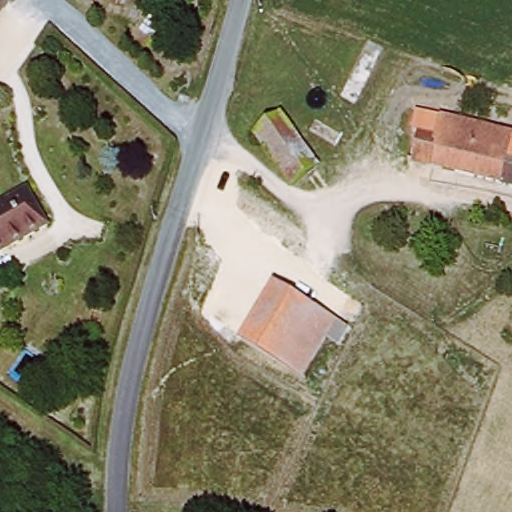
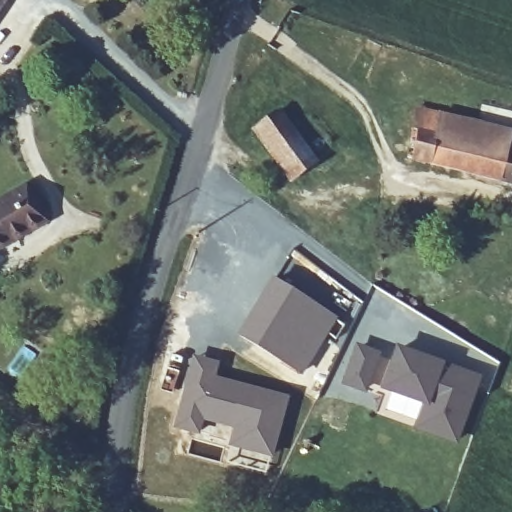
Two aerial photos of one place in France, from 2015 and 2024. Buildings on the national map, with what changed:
unchanged [(0,12),(0,0),(8,0),(0,12)]
unchanged [(280,113),(318,167),(293,184),(255,130),(280,113)]
unchanged [(512,134),(512,183),(380,161),(386,130),(412,134),(416,117),(512,134)]
unchanged [(44,235),(0,258),(0,205),(22,193),(44,235)]
demolished [(446,307),(397,274),(401,264),(459,286),(436,338),(429,335),(446,307)]
demolished [(381,315),(397,274),(446,307),(429,335),(381,315)]
unchanged [(346,326),(335,342),(323,335),(297,377),(237,342),(272,284),(346,326)]
new [(356,345),(381,353),(367,393),(342,384),(356,345)]
new [(396,346),(444,362),(481,376),(458,444),(414,430),(423,404),(381,389),(396,346)]
new [(191,354),(220,361),(217,376),(289,396),(271,460),(225,447),(230,432),(205,425),(200,438),(171,429),(191,354)]
new [(384,395),(417,409),(413,423),(379,410),(384,395)]

